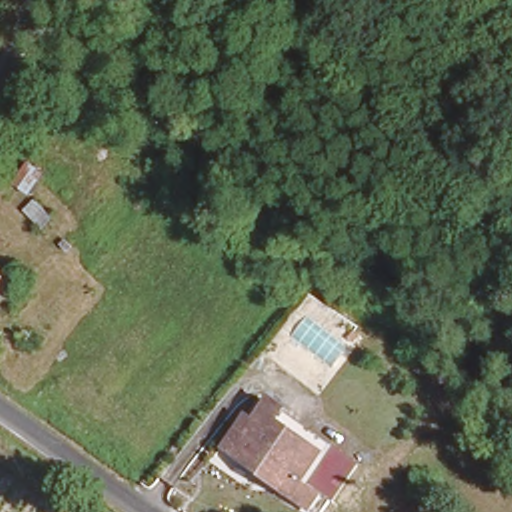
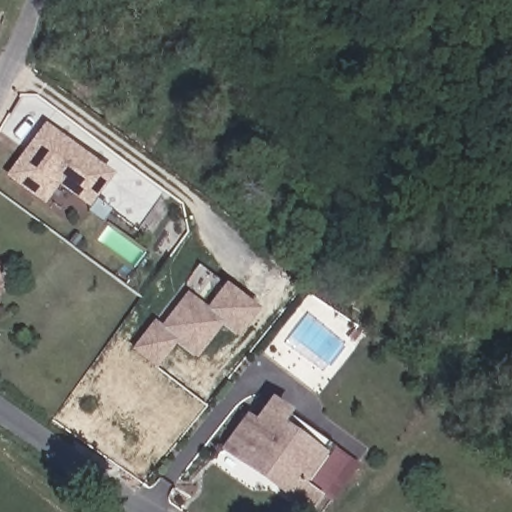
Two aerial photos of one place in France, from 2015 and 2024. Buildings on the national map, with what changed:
new [(43,203),(5,174),(44,123),(113,174),(86,207),(57,185),(43,203)]
unchanged [(16,278),(0,289),(0,263),(6,261),(16,278)]
new [(195,359),(175,345),(156,370),(129,349),(151,320),(159,325),(185,291),(204,306),(224,281),(259,308),(236,337),(221,325),(195,359)]
unchanged [(298,411),(285,431),(319,456),(297,493),(241,455),(233,449),(255,419),(263,425),(281,400),(298,411)]
new [(325,459),(334,445),(359,464),(332,500),(323,495),(315,506),(297,493),(319,456),(325,459)]

